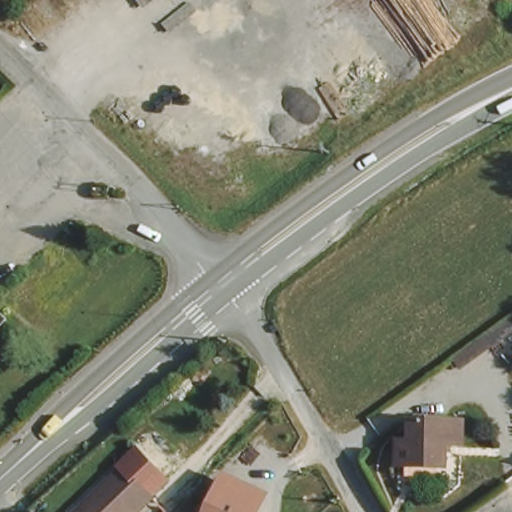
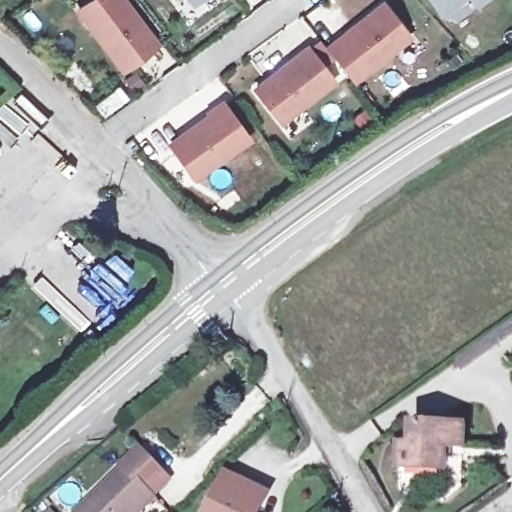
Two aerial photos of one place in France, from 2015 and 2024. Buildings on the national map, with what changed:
new [(122,0),(155,43),(122,69),(77,9),(89,0),(122,0)]
new [(191,0),(196,0),(193,3),(191,0)]
new [(433,0),(459,0),(443,12),(433,0)]
new [(473,0),(481,0),(477,4),(473,0)]
new [(382,4),(408,36),(352,81),(326,49),(382,4)]
new [(306,49),(330,80),(281,121),(255,89),(306,49)]
new [(209,115),(207,114),(221,104),(246,139),(193,178),(169,144),(209,115)]
unchanged [(420,442),(421,420),(471,422),(469,445),(454,444),(453,467),(406,466),(407,441),(420,442)]
unchanged [(159,493),(139,512),(79,512),(130,464),(159,493)]
unchanged [(264,497),(257,512),(214,512),(229,481),(264,497)]

